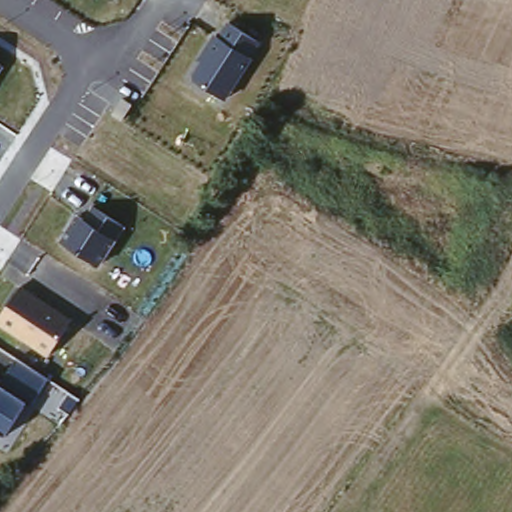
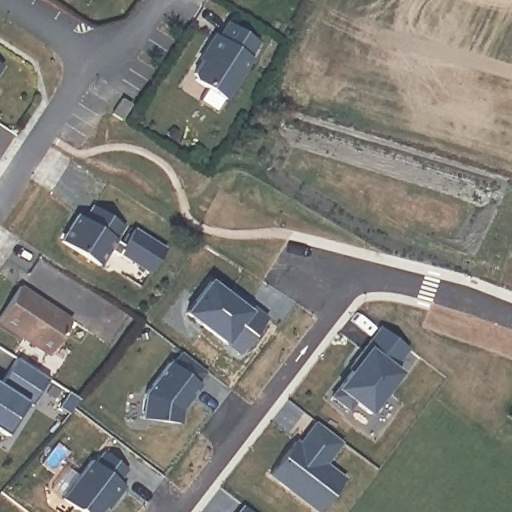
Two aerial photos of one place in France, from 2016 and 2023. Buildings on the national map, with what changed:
unchanged [(190,78),(201,60),(197,58),(212,32),(218,36),(227,23),(259,43),(250,58),(254,61),(226,99),(190,78)]
unchanged [(0,73),(0,64),(5,66),(0,73)]
unchanged [(84,216),(91,204),(127,226),(116,242),(110,253),(100,269),(57,242),(76,212),(84,216)]
new [(152,275),(122,257),(121,259),(110,253),(116,242),(127,247),(137,230),(167,249),(152,275)]
new [(202,282),(229,300),(232,298),(261,320),(233,357),(179,315),(202,282)]
unchanged [(48,354),(0,323),(0,315),(20,284),(71,318),(48,354)]
new [(407,350),(389,374),(396,379),(367,416),(353,406),(347,413),(331,399),(357,366),(355,364),(381,330),(407,350)]
new [(201,373),(194,384),(197,387),(185,403),(182,401),(176,409),(177,411),(177,425),(137,423),(138,397),(163,364),(166,366),(174,354),(201,373)]
unchanged [(50,379),(35,408),(27,402),(8,434),(0,429),(0,384),(17,359),(50,379)]
new [(338,444),(322,466),(340,481),(318,512),(315,512),(269,477),(294,443),(300,448),(305,442),(302,440),(313,425),(338,444)]
new [(124,467),(116,478),(121,484),(110,498),(107,494),(93,512),(82,512),(74,506),(69,507),(57,497),(86,457),(91,461),(100,448),(124,467)]
new [(247,512),(241,512),(244,509),(247,512)]

